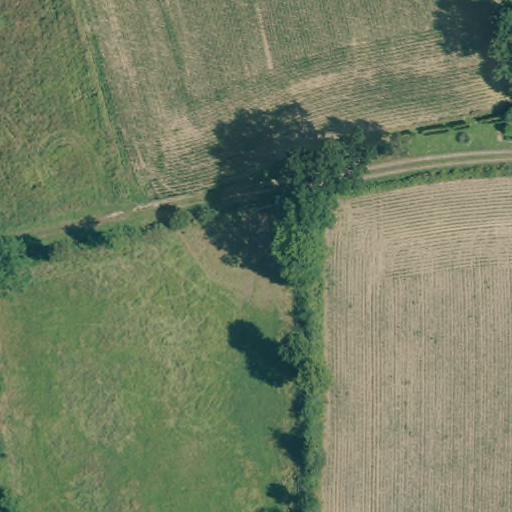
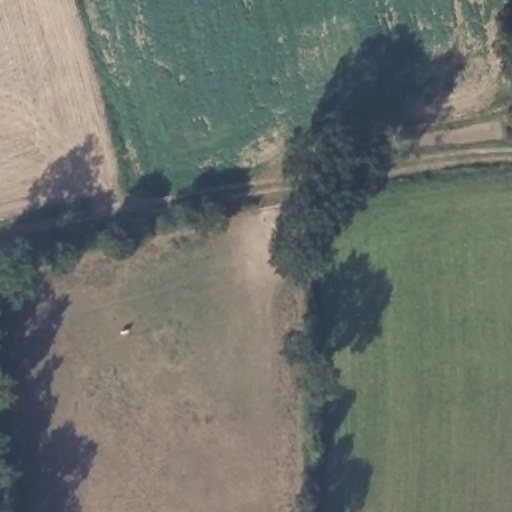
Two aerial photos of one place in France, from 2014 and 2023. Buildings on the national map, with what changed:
[]

